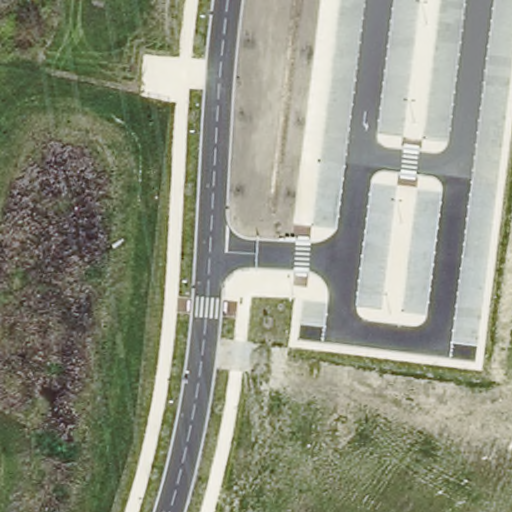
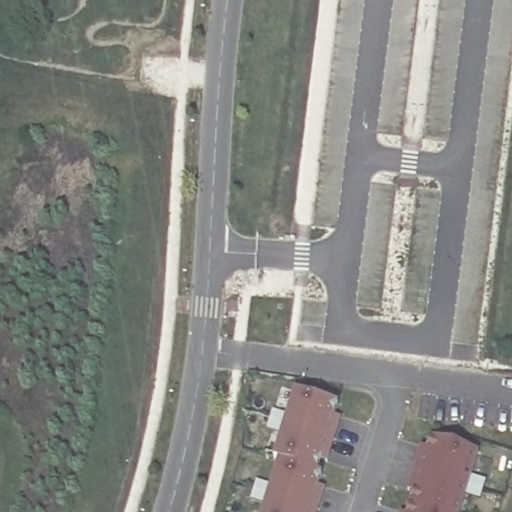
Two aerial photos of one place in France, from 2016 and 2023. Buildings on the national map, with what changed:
new [(336,401),(330,420),(337,422),(327,452),(321,450),(315,469),(320,471),(314,490),(320,492),(314,512),(261,512),(277,458),(272,456),(294,388),(336,401)]
new [(477,450),(458,512),(406,512),(415,483),(410,481),(419,451),(425,453),(430,435),(477,450)]

